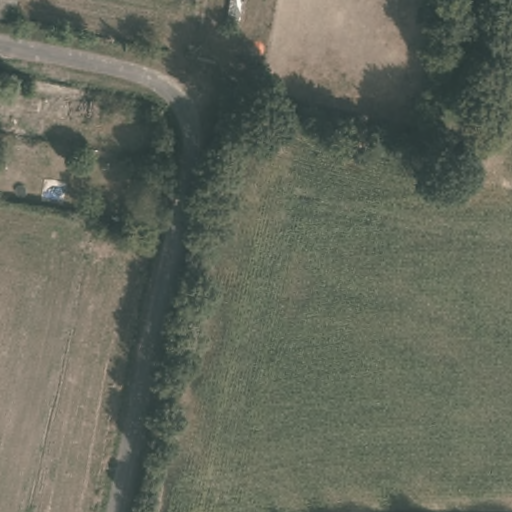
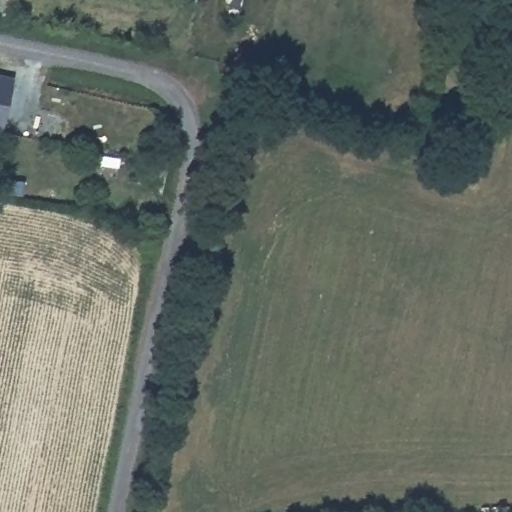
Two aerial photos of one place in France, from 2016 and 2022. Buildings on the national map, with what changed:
unchanged [(0,18),(0,0),(10,0),(7,19),(0,18)]
new [(0,132),(0,76),(14,79),(2,132),(0,132)]

